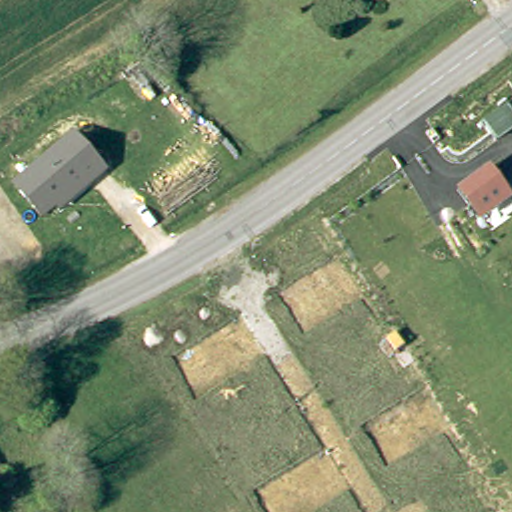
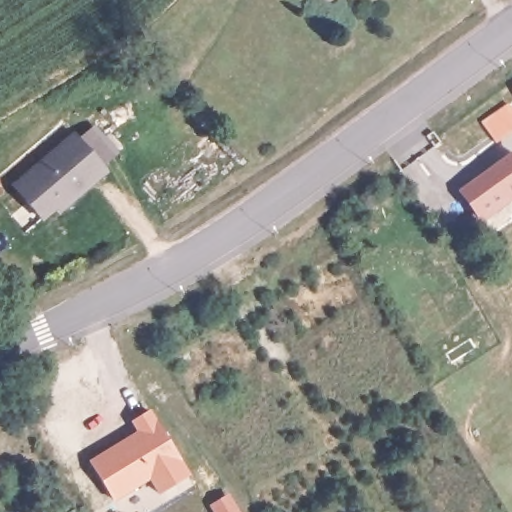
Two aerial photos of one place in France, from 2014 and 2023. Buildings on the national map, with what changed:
new [(512,107),(512,135),(499,145),(484,121),(509,102),(512,107)]
unchanged [(42,221),(14,186),(76,133),(110,173),(62,214),(57,210),(42,221)]
unchanged [(480,221),(457,191),(512,150),(512,198),(480,221)]
new [(130,421),(151,408),(192,473),(159,494),(150,480),(116,501),(89,459),(136,430),(130,421)]
unchanged [(0,495),(0,467),(9,491),(0,495)]
new [(227,498),(236,512),(215,512),(212,508),(227,498)]

